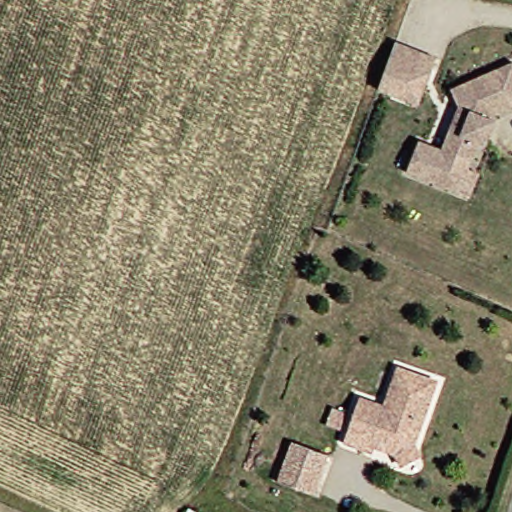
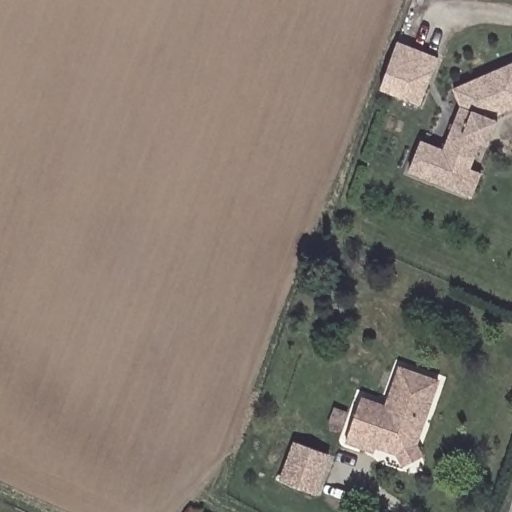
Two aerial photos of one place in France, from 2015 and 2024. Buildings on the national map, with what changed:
unchanged [(379,90),(397,43),(438,58),(420,106),(379,90)]
unchanged [(429,182),(406,174),(416,142),(440,150),(456,105),(448,89),(510,60),(512,64),(512,105),(486,117),(493,119),(485,145),(475,142),(466,169),(477,173),(468,197),(429,182)]
unchanged [(401,452),(369,441),(367,446),(348,440),(363,397),(390,406),(403,366),(442,381),(418,445),(423,456),(406,464),(401,452)]
unchanged [(280,481),(294,441),(327,453),(312,493),(280,481)]

